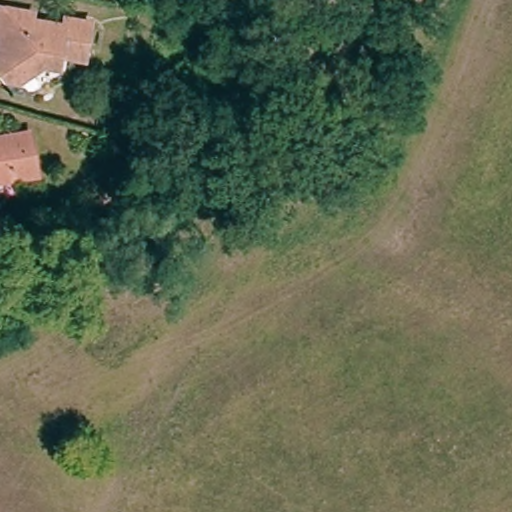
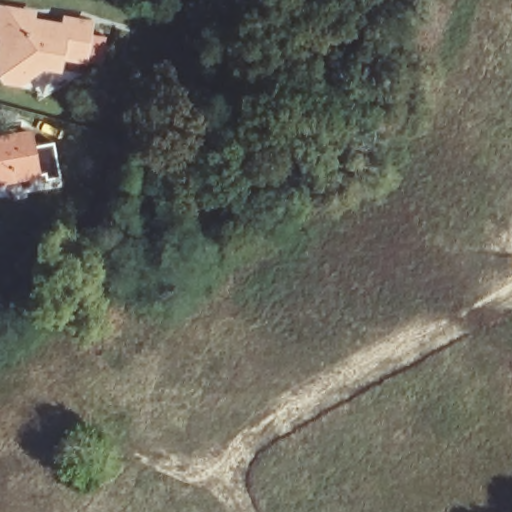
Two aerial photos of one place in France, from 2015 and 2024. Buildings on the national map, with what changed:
unchanged [(0,39),(0,10),(27,16),(26,23),(58,29),(59,22),(94,29),(87,66),(64,62),(62,75),(46,72),(38,77),(20,74),(7,85),(0,76),(0,44),(1,39),(0,39)]
unchanged [(25,141),(34,184),(0,190),(0,145),(25,141)]

